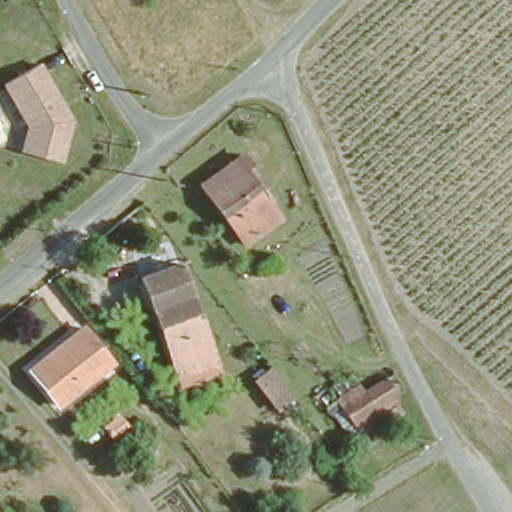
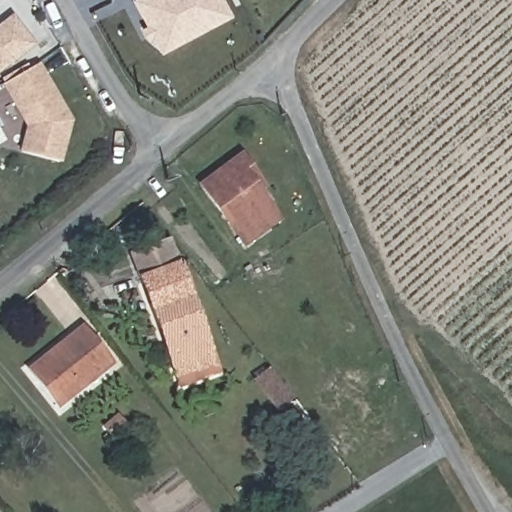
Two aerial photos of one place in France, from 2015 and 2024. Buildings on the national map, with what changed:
new [(200,33),(165,53),(137,1),(139,0),(225,0),(233,15),(200,33)]
new [(0,23),(12,14),(36,44),(0,73),(0,23)]
unchanged [(69,115),(71,119),(62,161),(24,153),(29,126),(3,84),(36,64),(61,104),(69,115)]
unchanged [(260,178),(254,184),(276,209),(246,234),(199,178),(236,150),(254,170),(260,178)]
unchanged [(167,360),(150,312),(144,293),(149,291),(143,274),(178,264),(203,338),(205,347),(167,360)]
unchanged [(107,356),(54,399),(25,363),(77,320),(107,356)]
unchanged [(290,395),(275,406),(252,378),(267,366),(290,395)]
unchanged [(403,400),(359,436),(324,391),(351,372),(358,381),(376,373),(403,400)]
unchanged [(131,430),(111,443),(99,425),(118,413),(131,430)]

